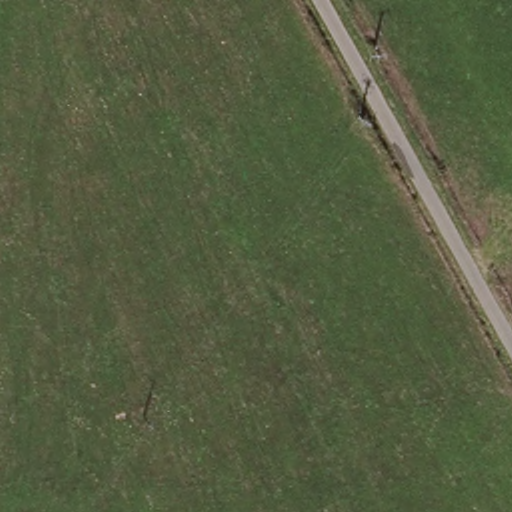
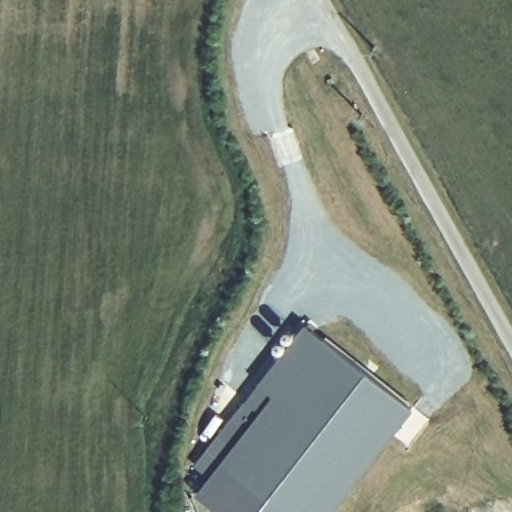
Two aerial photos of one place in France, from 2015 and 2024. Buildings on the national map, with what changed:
new [(216,512),(194,496),(220,460),(205,448),(306,323),(415,407),(333,512),(216,512)]

